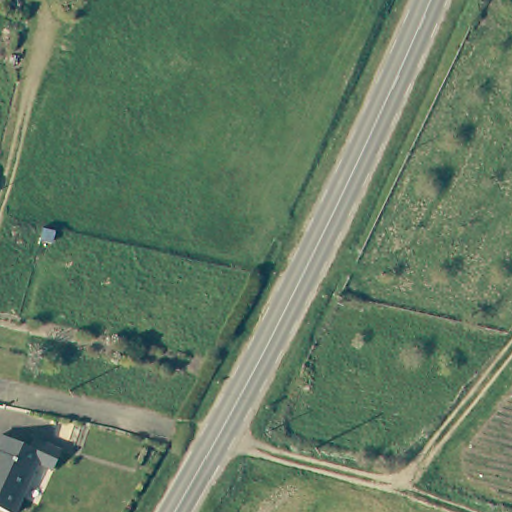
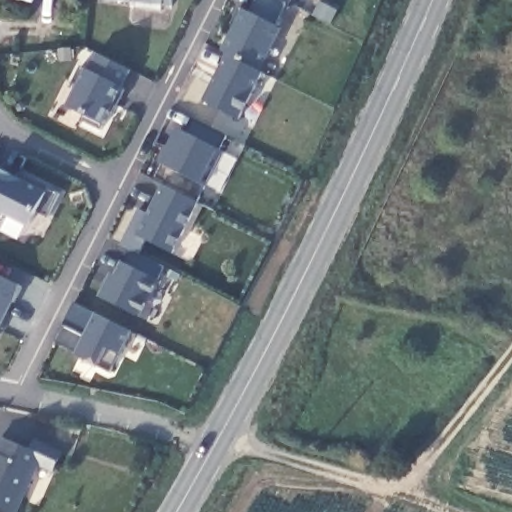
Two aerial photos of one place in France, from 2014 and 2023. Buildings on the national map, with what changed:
new [(172,7),(119,0),(173,0),(172,7)]
new [(227,54),(221,51),(242,9),(248,13),(255,0),(292,0),(290,5),(287,2),(276,25),(282,28),(260,70),(263,72),(239,119),(202,100),(227,54)]
new [(103,125),(99,131),(81,121),(85,115),(67,105),(85,68),(87,70),(97,53),(130,70),(103,125)]
new [(140,317),(100,296),(111,273),(115,275),(122,262),(127,265),(133,250),(120,243),(138,209),(147,213),(163,183),(154,178),(161,163),(175,128),(185,132),(194,118),(226,135),(218,148),(223,151),(206,186),(195,201),(199,204),(173,254),(144,239),(139,253),(164,267),(140,317)]
new [(1,169),(32,185),(34,180),(60,193),(49,217),(37,211),(30,227),(4,213),(1,219),(0,219),(0,172),(1,169)]
new [(23,287),(15,303),(9,300),(0,316),(0,275),(23,287)]
new [(63,326),(84,336),(95,313),(132,332),(111,372),(75,355),(76,353),(55,342),(63,326)]
unchanged [(19,449),(24,439),(51,452),(41,476),(28,470),(9,512),(0,512),(0,441),(19,449)]

